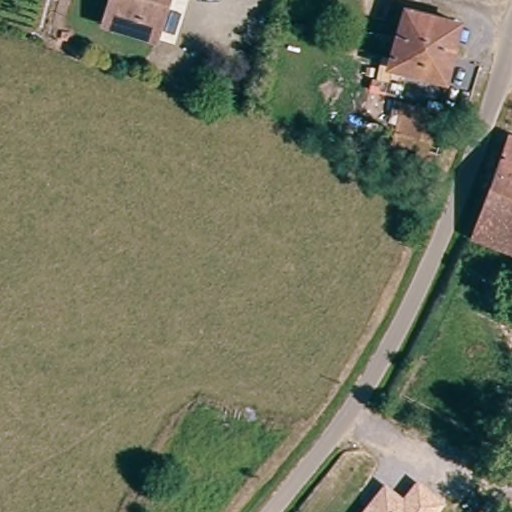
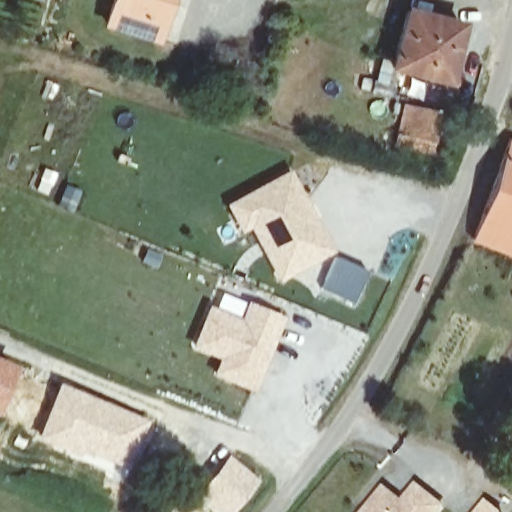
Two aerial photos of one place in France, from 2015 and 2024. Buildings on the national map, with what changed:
unchanged [(155,15),(165,17),(158,37),(105,22),(113,0),(160,0),(155,15)]
unchanged [(461,22),(439,80),(429,76),(423,90),(413,86),(416,72),(388,62),(408,4),(461,22)]
unchanged [(423,144),(403,136),(412,115),(424,117),(432,119),(423,144)]
unchanged [(512,235),(480,224),(512,146),(512,235)]
new [(333,252),(277,283),(249,228),(238,234),(223,204),(290,170),(333,252)]
new [(365,272),(351,303),(320,290),(335,258),(365,272)]
new [(208,304),(214,306),(221,291),(283,315),(251,392),(210,375),(216,359),(190,348),(208,304)]
new [(15,365),(0,400),(0,359),(15,365)]
new [(59,381),(150,419),(127,475),(36,438),(59,381)]
new [(260,480),(231,512),(212,512),(192,493),(229,454),(260,480)]
unchanged [(371,512),(388,490),(407,504),(419,487),(445,505),(439,512),(371,512)]

